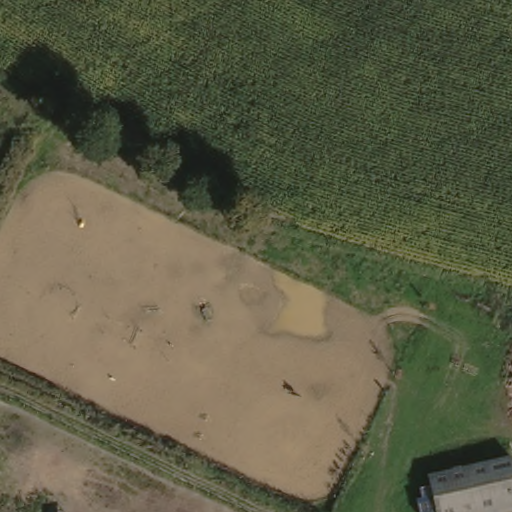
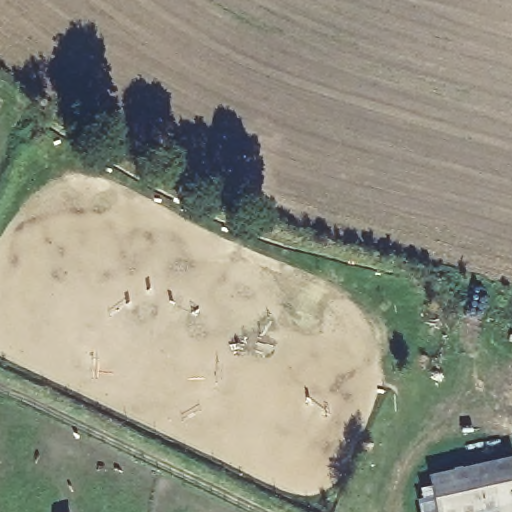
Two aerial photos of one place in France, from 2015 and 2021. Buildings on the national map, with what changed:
unchanged [(435,512),(428,478),(512,460),(512,512),(511,512),(435,512)]

